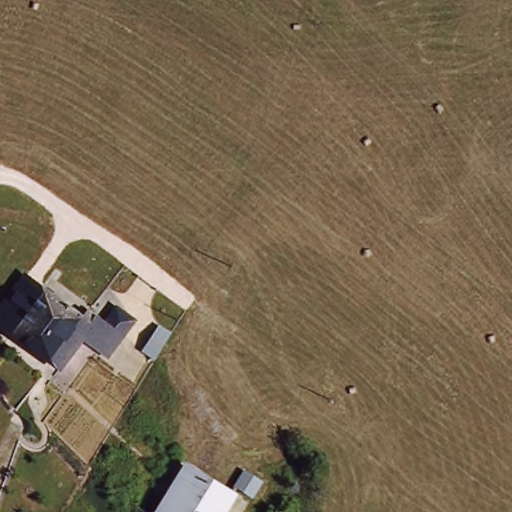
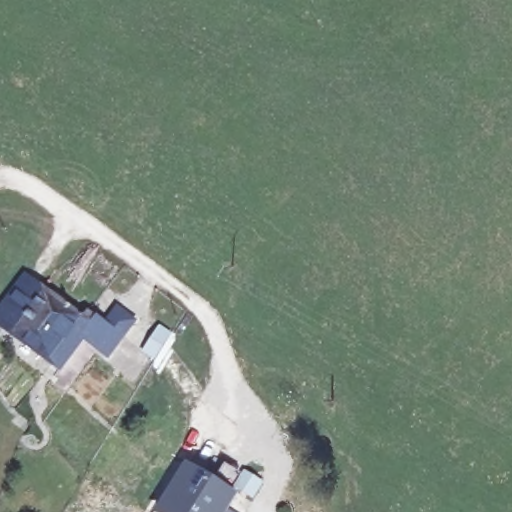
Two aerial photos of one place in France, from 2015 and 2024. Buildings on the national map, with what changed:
unchanged [(37,351),(5,329),(0,326),(0,303),(15,280),(30,290),(61,309),(75,318),(50,360),(37,351)]
unchanged [(89,318),(90,315),(99,321),(102,316),(106,309),(125,320),(118,332),(104,355),(76,337),(59,366),(50,360),(75,318),(79,311),(89,318)]
unchanged [(180,315),(191,321),(176,347),(166,340),(180,315)]
unchanged [(188,461),(233,487),(218,512),(157,512),(188,461)]
unchanged [(246,464),(262,473),(254,488),(238,478),(246,464)]

